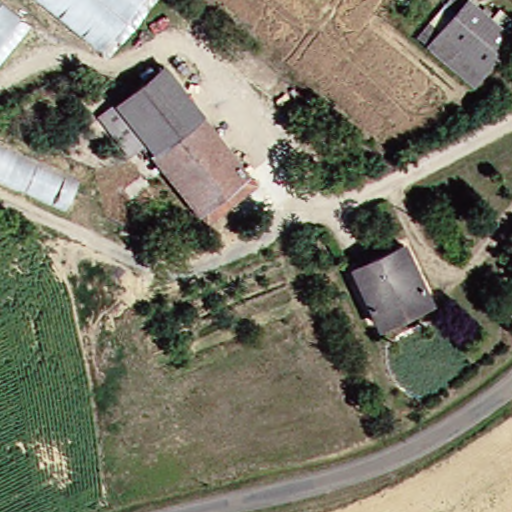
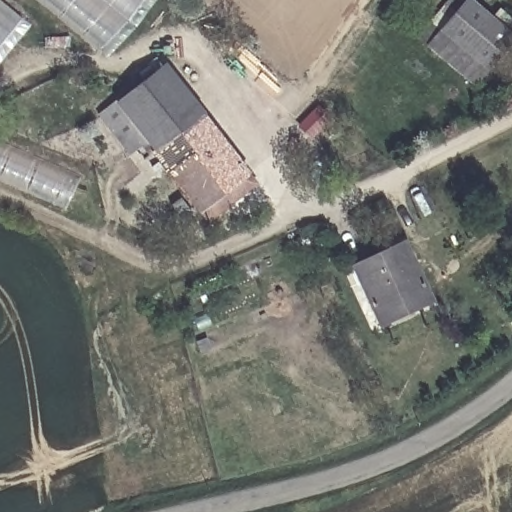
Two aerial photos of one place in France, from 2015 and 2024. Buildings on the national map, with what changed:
unchanged [(95,45),(37,0),(131,0),(95,45)]
unchanged [(448,10),(437,0),(465,0),(505,36),(478,70),(430,30),(448,10)]
unchanged [(507,0),(512,0),(512,4),(507,0)]
unchanged [(0,8),(20,23),(0,48),(0,8)]
unchanged [(478,70),(463,86),(417,46),(430,30),(478,70)]
unchanged [(131,113),(114,90),(163,52),(181,77),(131,113)]
unchanged [(196,98),(148,136),(131,113),(181,77),(196,98)]
unchanged [(196,98),(237,153),(188,190),(148,136),(196,98)]
unchanged [(67,204),(0,175),(0,141),(79,177),(67,204)]
unchanged [(237,153),(248,168),(198,204),(188,190),(237,153)]
unchanged [(416,291),(391,301),(395,312),(370,321),(345,266),(395,245),(416,291)]

